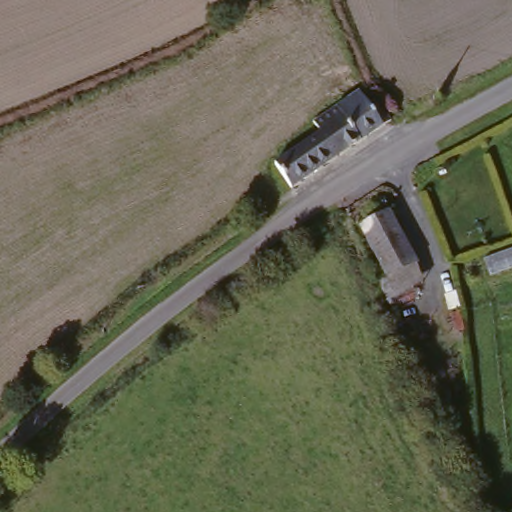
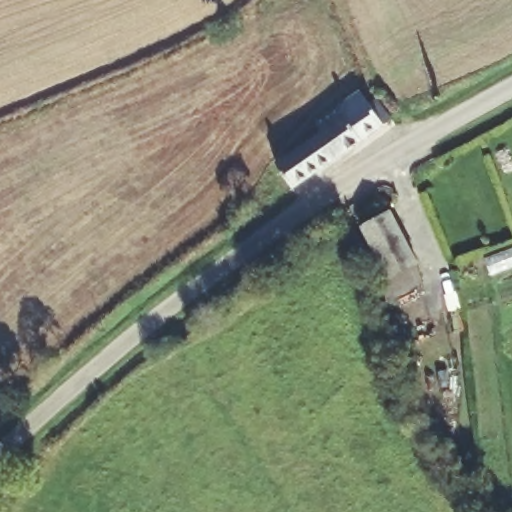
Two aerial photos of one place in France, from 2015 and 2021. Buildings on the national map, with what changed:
unchanged [(319,120),(359,93),(367,105),(373,100),(386,118),(379,122),(383,127),(384,130),(294,191),(291,187),(278,167),(322,137),(313,125),(319,120)]
unchanged [(390,213),(425,281),(396,300),(360,233),(390,213)]

